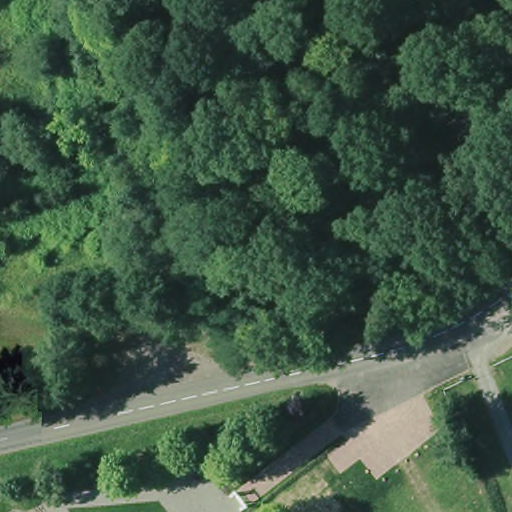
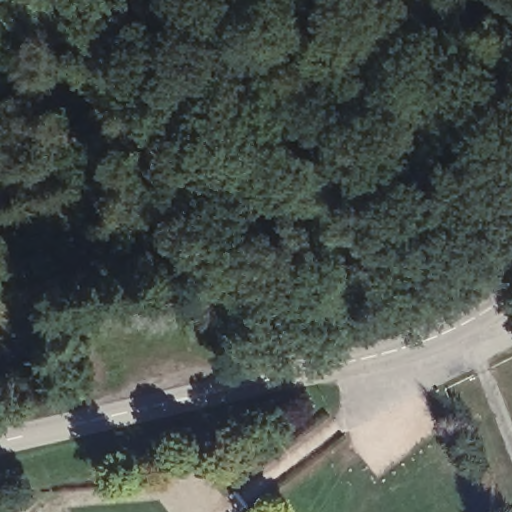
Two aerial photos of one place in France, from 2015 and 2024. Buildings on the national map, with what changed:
[]

